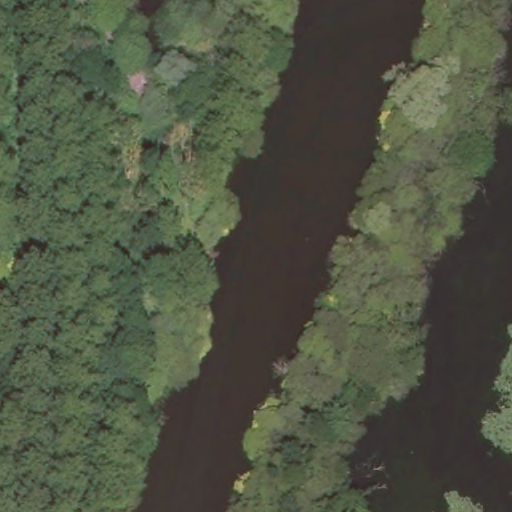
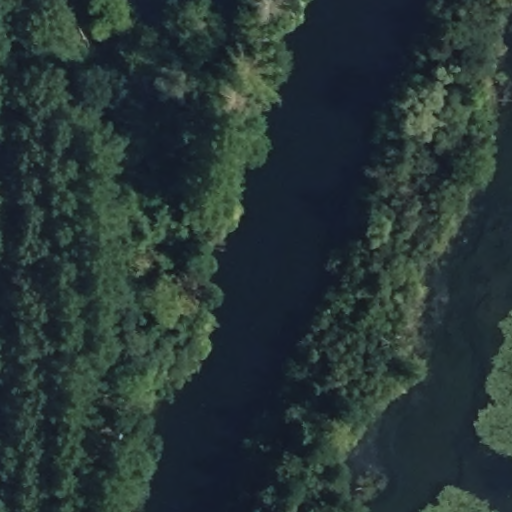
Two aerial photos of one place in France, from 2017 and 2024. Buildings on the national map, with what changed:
unchanged [(162,68),(161,114),(130,112),(130,101),(112,101),(113,71),(130,71),(130,62),(162,68)]

